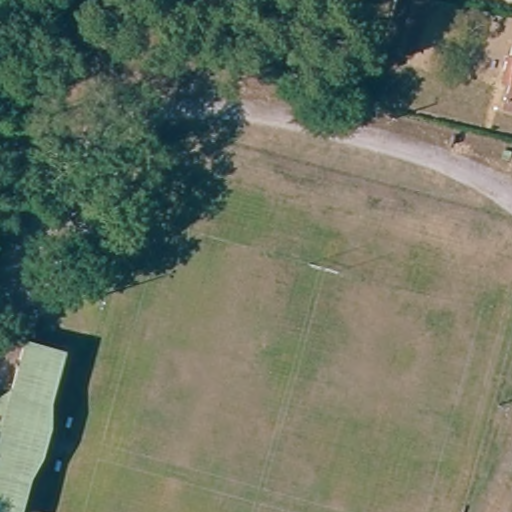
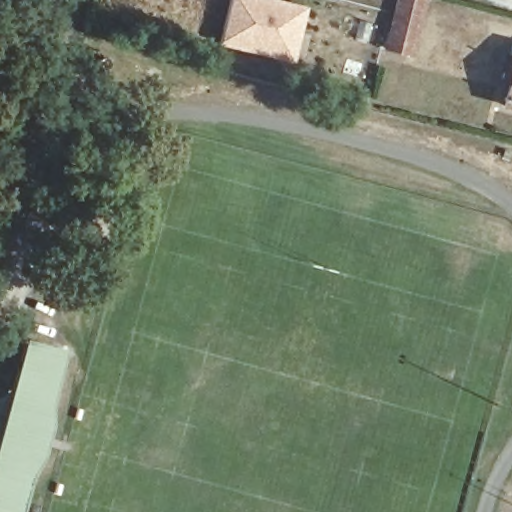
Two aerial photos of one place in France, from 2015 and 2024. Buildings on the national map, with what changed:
new [(232,0),(257,0),(306,13),(292,63),(273,58),(245,51),(221,45),(232,0)]
unchanged [(385,49),(383,49),(396,0),(422,0),(408,55),(397,52),(393,69),(381,66),(385,49)]
unchanged [(507,103),(512,83),(512,104),(507,103)]
unchanged [(27,343),(64,353),(50,404),(43,427),(51,429),(42,457),(36,455),(30,476),(20,512),(0,512),(0,400),(14,392),(27,343)]

